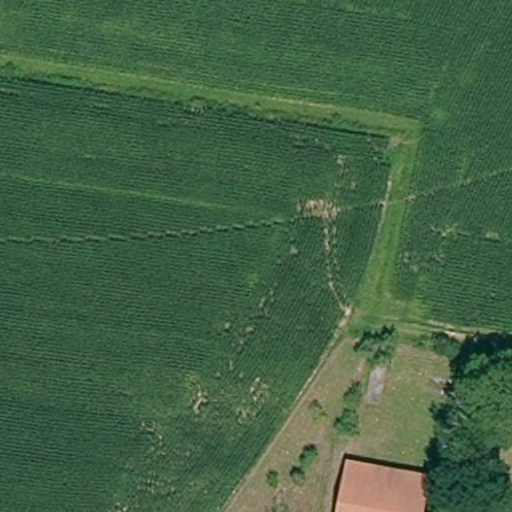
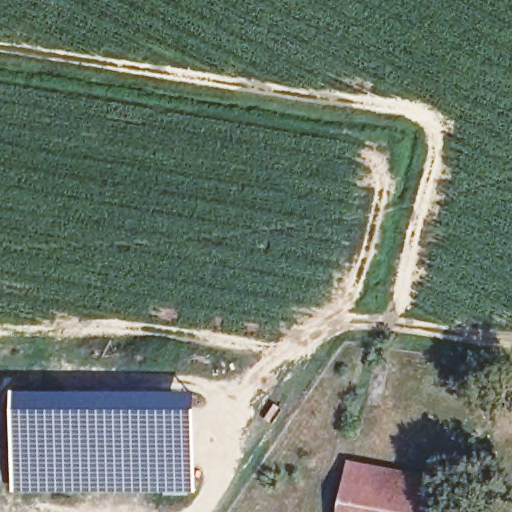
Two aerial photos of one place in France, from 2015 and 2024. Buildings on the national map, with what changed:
new [(195,495),(11,494),(11,394),(196,395),(195,495)]
unchanged [(407,469),(403,491),(343,482),(348,460),(407,469)]
unchanged [(403,491),(400,512),(337,512),(343,482),(403,491)]

